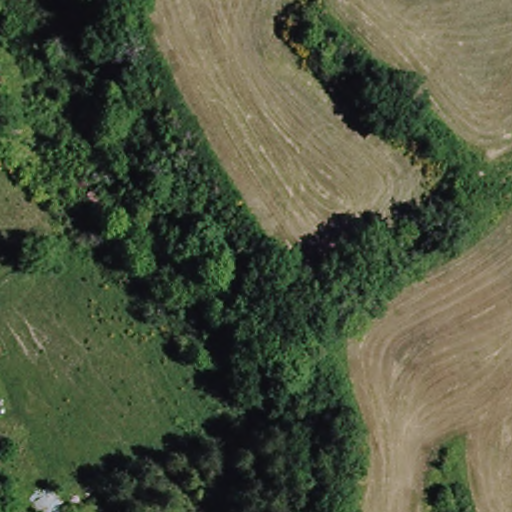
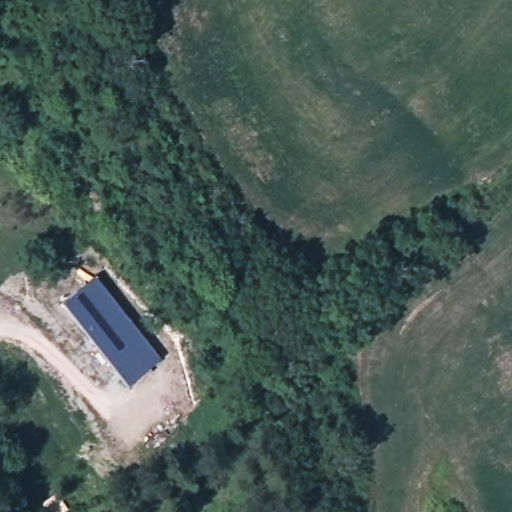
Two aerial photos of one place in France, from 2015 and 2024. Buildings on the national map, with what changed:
unchanged [(94,172),(101,205),(84,208),(77,176),(94,172)]
new [(97,274),(162,361),(126,387),(61,303),(97,274)]

